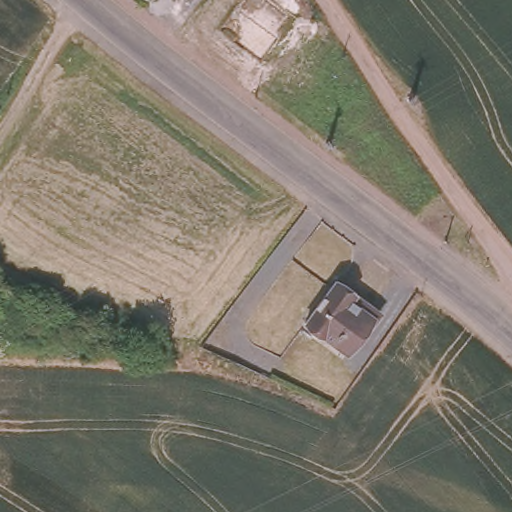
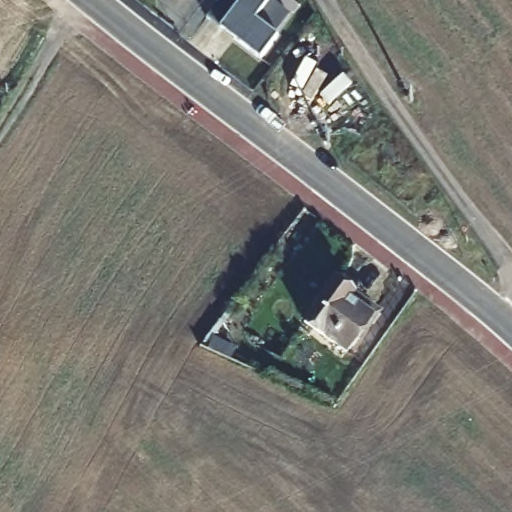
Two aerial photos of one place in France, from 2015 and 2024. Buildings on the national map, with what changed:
unchanged [(180,0),(184,0),(182,2),(180,0)]
unchanged [(206,0),(209,0),(208,1),(206,0)]
new [(271,0),(298,22),(283,41),(287,44),(269,66),(217,22),(234,0),(271,0)]
unchanged [(372,312),(342,352),(303,321),(333,281),(372,312)]
unchanged [(215,342),(217,349),(203,352),(201,351),(207,344),(215,342)]

